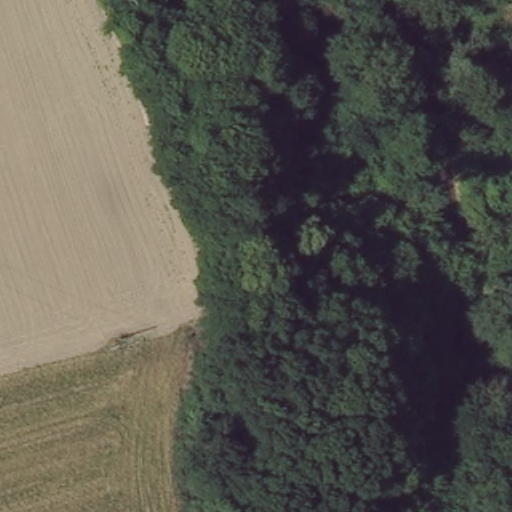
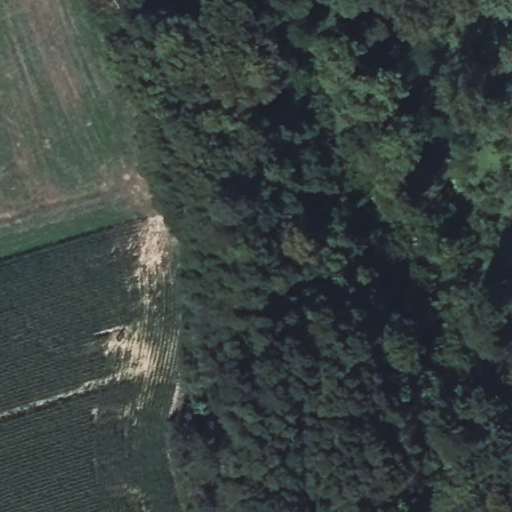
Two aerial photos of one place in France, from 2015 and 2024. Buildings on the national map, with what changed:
[]

